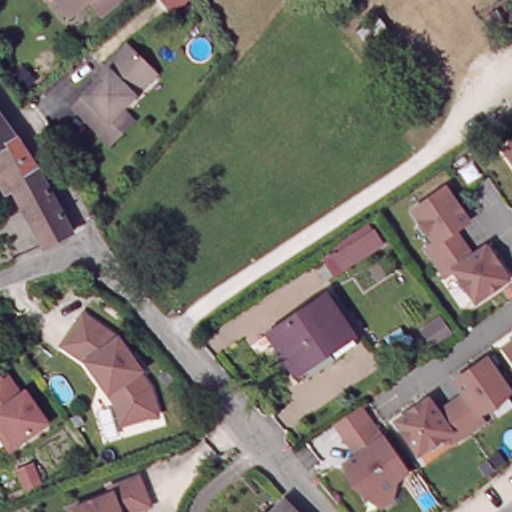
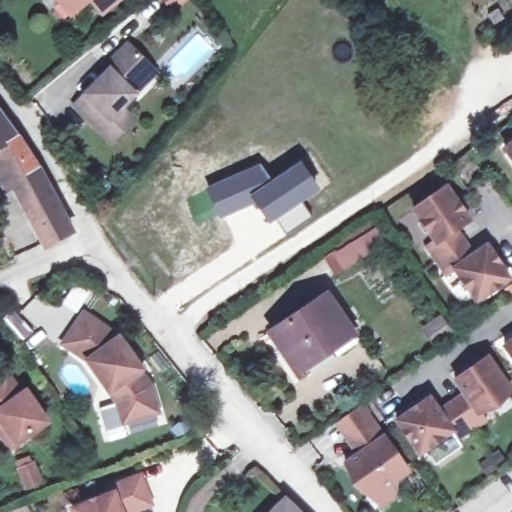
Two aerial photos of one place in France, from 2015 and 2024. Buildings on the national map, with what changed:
unchanged [(60,0),(93,0),(84,7),(73,16),(63,4),(60,0)]
unchanged [(95,0),(122,0),(106,14),(95,0)]
unchanged [(119,136),(107,147),(70,108),(105,74),(101,70),(124,49),(151,77),(128,99),(132,103),(120,114),(130,125),(119,136)]
unchanged [(4,134),(61,230),(35,244),(0,185),(0,129),(4,134)]
unchanged [(512,135),(512,160),(501,142),(512,135)]
new [(260,161),(270,178),(300,159),(320,189),(302,202),(311,216),(285,234),(275,219),(268,223),(253,202),(217,218),(204,189),(260,161)]
unchanged [(469,297),(412,207),(446,182),(469,215),(459,224),(475,251),(489,241),(505,272),(469,297)]
unchanged [(369,226),(380,245),(340,271),(328,252),(369,226)]
unchanged [(322,296),(355,343),(340,352),(335,344),(294,373),(268,334),(322,296)]
unchanged [(64,338),(85,308),(120,332),(143,365),(141,366),(152,382),(160,408),(124,419),(118,398),(87,355),(64,338)]
unchanged [(512,331),(512,372),(495,345),(512,331)]
unchanged [(479,412),(487,422),(454,440),(446,431),(418,452),(393,418),(431,391),(439,402),(458,389),(450,375),(485,351),(508,389),(479,412)]
unchanged [(7,449),(0,440),(0,357),(45,414),(7,449)]
unchanged [(398,497),(371,512),(339,465),(356,453),(346,441),(374,419),(405,469),(398,497)]
unchanged [(34,457),(44,483),(27,490),(16,464),(34,457)]
unchanged [(110,481),(140,470),(152,500),(127,509),(128,512),(75,512),(72,503),(82,500),(113,487),(110,481)]
unchanged [(296,512),(275,512),(286,502),(296,512)]

